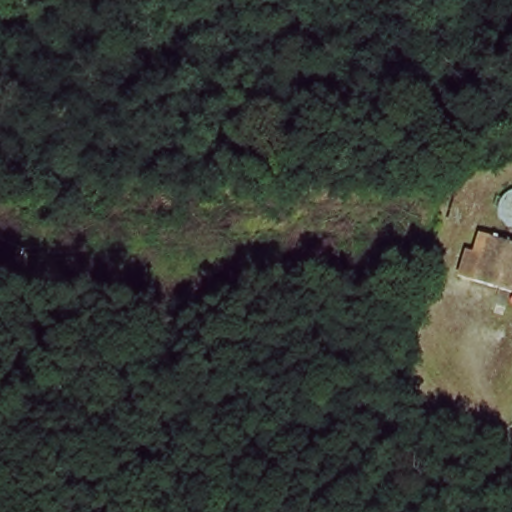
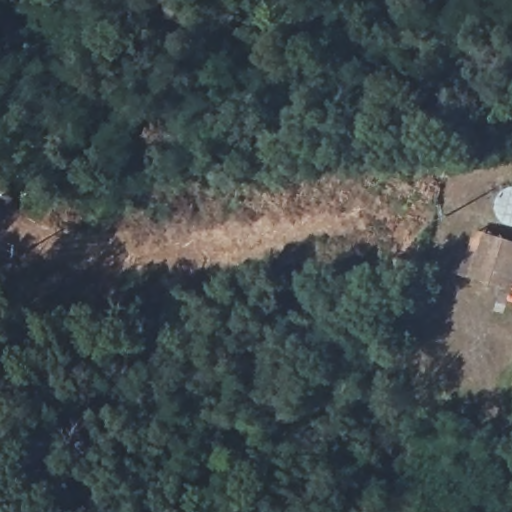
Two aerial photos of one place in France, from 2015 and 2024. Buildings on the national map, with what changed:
unchanged [(461,246),(472,247),(476,229),(512,238),(512,289),(454,273),(461,246)]

